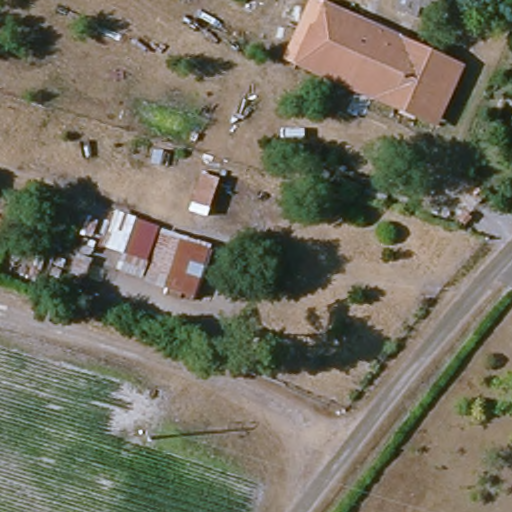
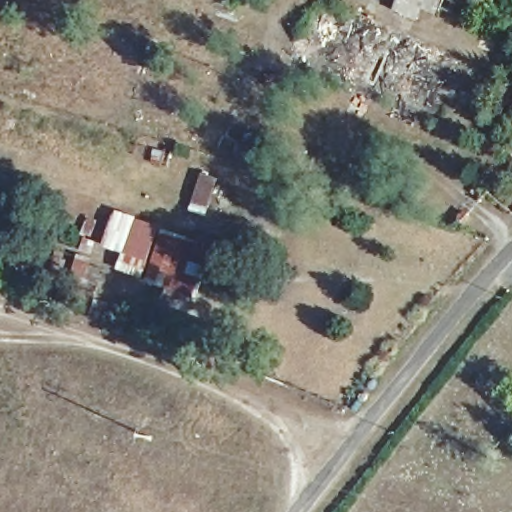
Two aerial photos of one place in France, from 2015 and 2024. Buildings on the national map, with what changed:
demolished [(378,26),(353,83),(300,58),(322,0),(325,0),(378,26)]
unchanged [(402,0),(442,0),(434,23),(399,9),(402,0)]
demolished [(379,94),(402,37),(463,65),(439,122),(379,94)]
unchanged [(164,289),(115,269),(120,254),(99,246),(115,209),(180,238),(164,289)]
unchanged [(211,247),(194,300),(164,289),(180,238),(211,247)]

